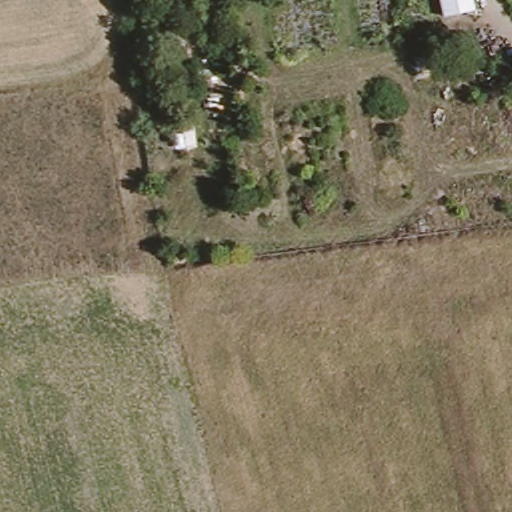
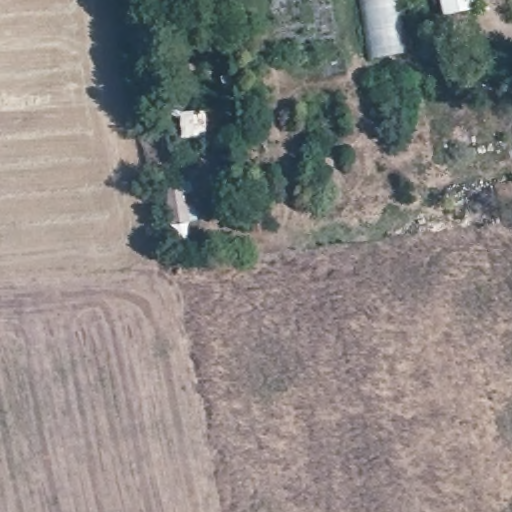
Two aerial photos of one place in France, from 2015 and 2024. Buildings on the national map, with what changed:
new [(371,60),(359,0),(399,0),(408,53),(371,60)]
unchanged [(475,14),(444,20),(439,0),(472,0),(475,14)]

